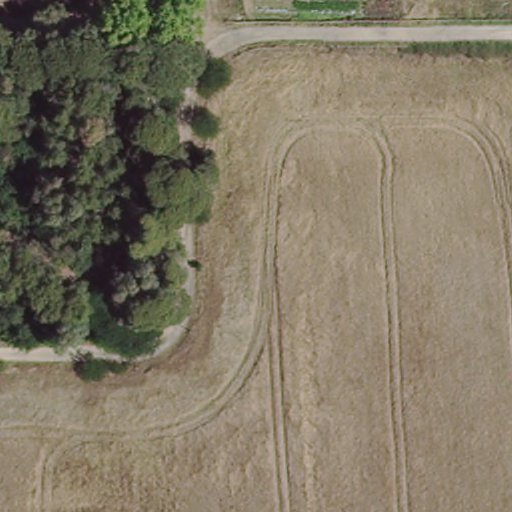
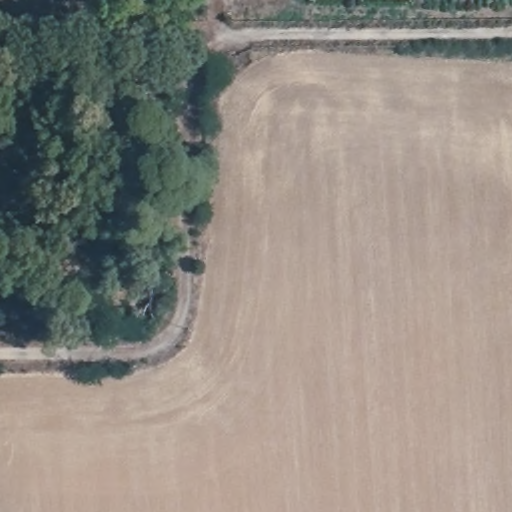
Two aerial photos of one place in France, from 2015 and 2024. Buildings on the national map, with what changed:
[]

